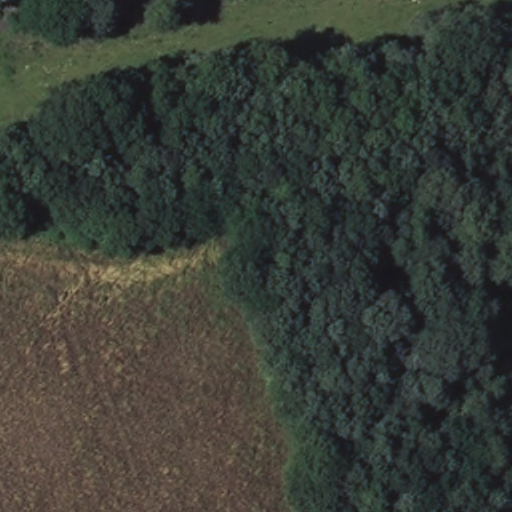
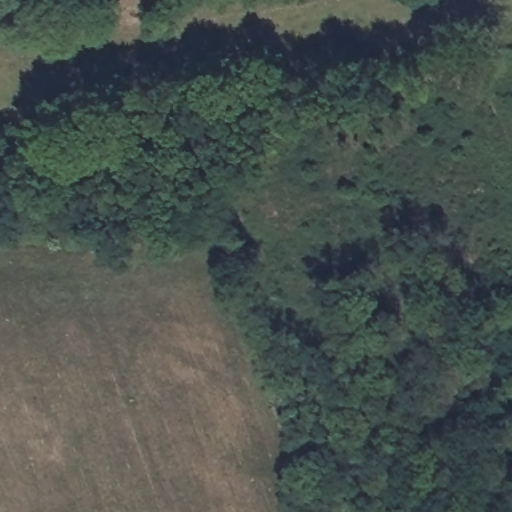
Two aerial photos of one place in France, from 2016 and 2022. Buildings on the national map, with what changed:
[]

